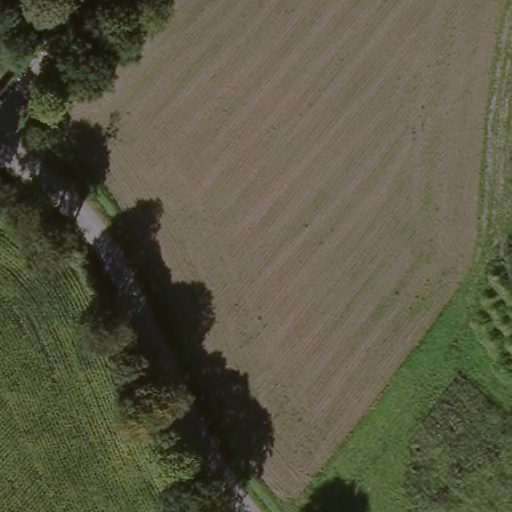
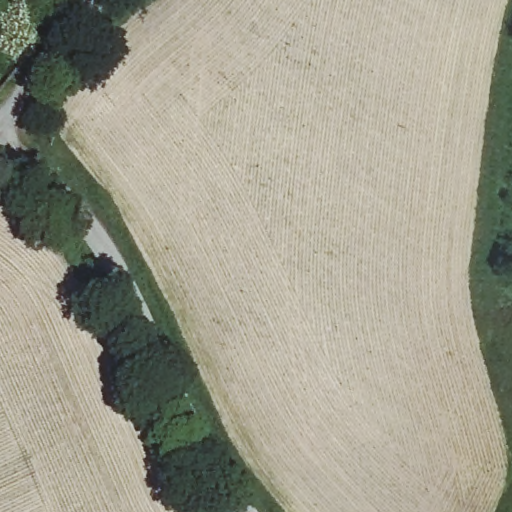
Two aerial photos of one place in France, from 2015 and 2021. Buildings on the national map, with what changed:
[]

